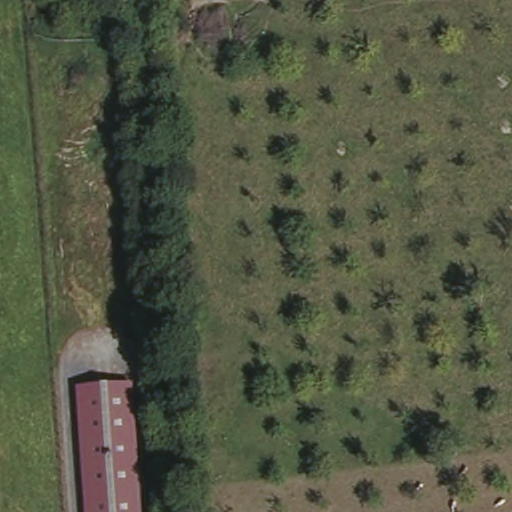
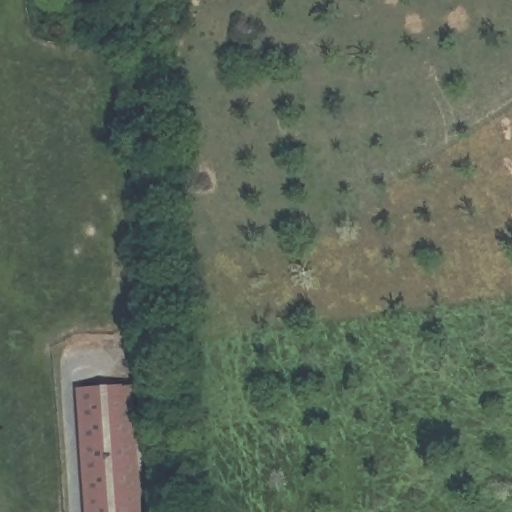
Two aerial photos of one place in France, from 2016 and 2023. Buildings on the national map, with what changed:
unchanged [(48,0),(82,0),(48,7),(48,0)]
unchanged [(134,384),(143,512),(85,512),(78,388),(134,384)]

